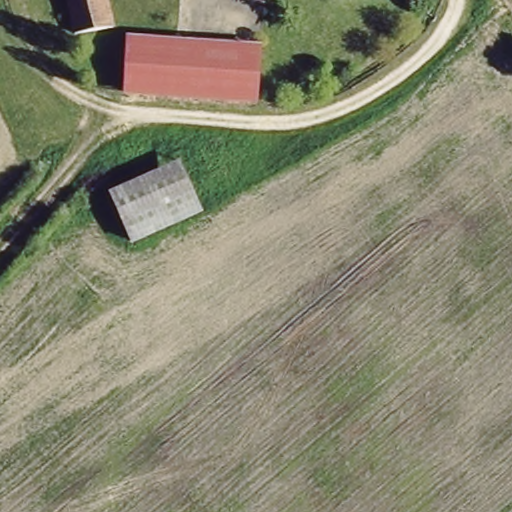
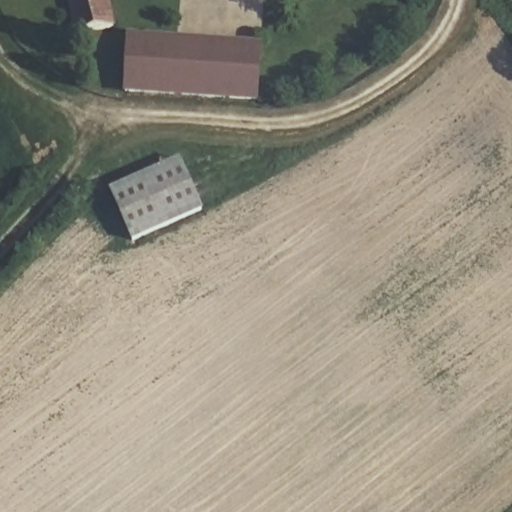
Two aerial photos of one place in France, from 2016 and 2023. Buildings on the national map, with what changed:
unchanged [(105,0),(109,25),(72,32),(68,0),(105,0)]
unchanged [(132,46),(258,42),(257,97),(126,104),(132,46)]
unchanged [(203,212),(132,243),(108,188),(177,159),(203,212)]

